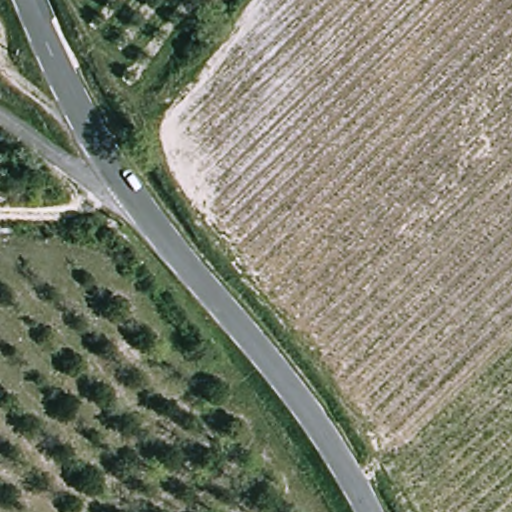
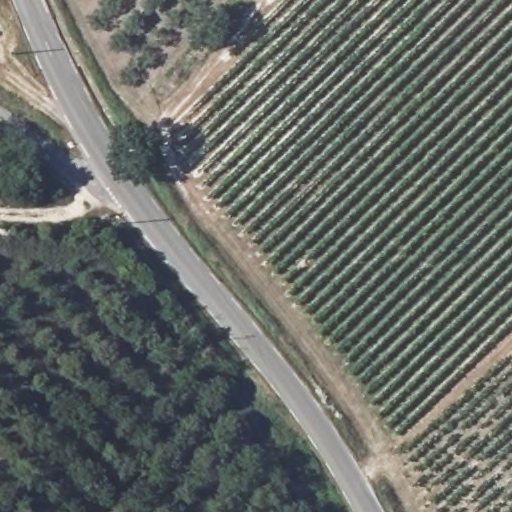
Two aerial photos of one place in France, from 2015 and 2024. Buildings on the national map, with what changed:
[]

